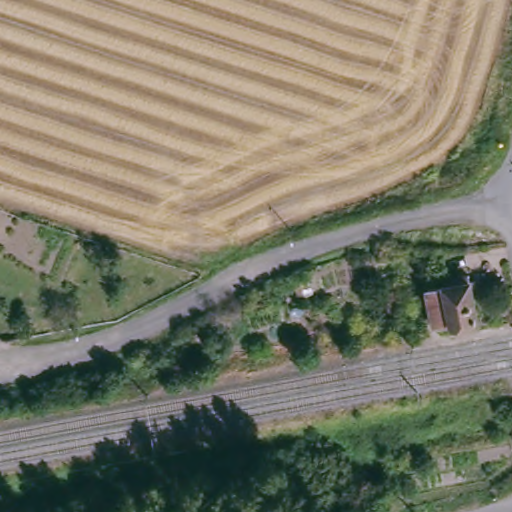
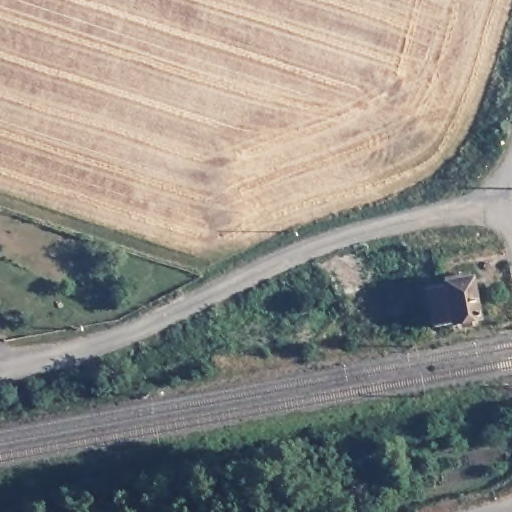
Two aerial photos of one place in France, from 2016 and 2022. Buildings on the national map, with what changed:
unchanged [(441,283),(439,277),(463,273),(464,273),(466,279),(477,277),(478,286),(467,287),(473,318),(466,320),(447,322),(431,326),(423,287),(441,283)]

